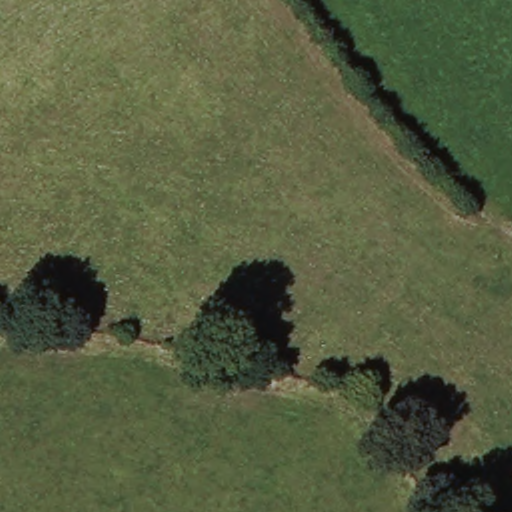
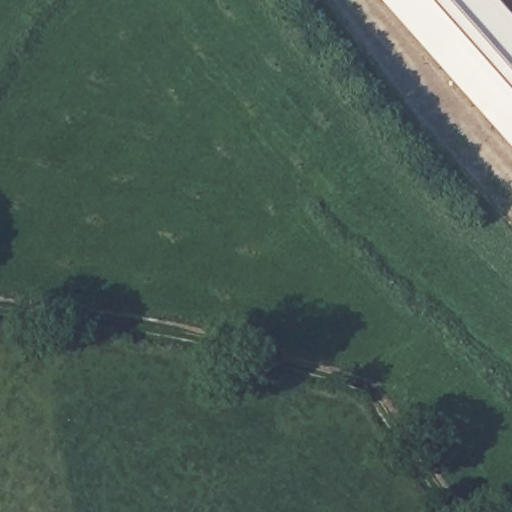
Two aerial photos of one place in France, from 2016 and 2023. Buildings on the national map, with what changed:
new [(384,0),(488,0),(512,27),(512,143),(384,0)]

